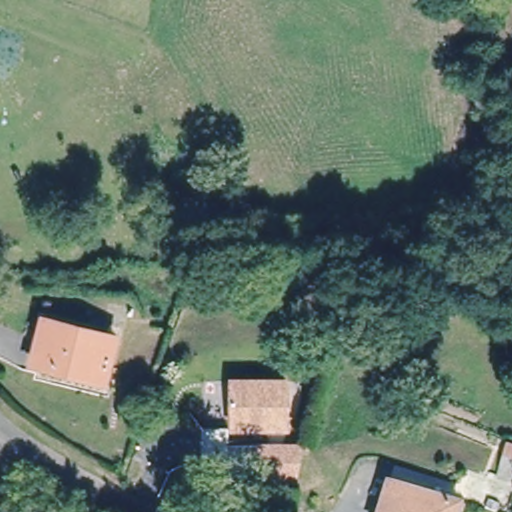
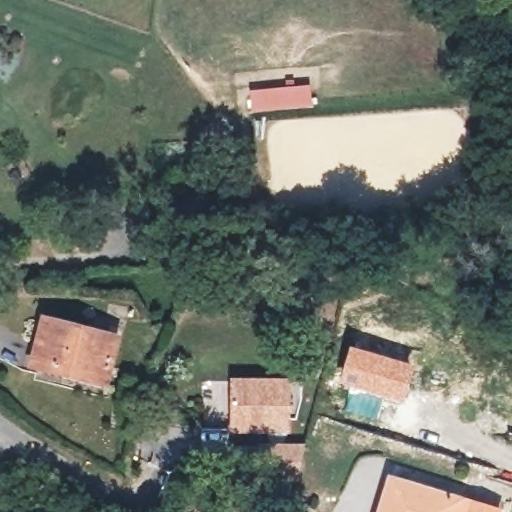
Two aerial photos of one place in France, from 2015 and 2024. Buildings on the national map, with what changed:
new [(312,107),(252,112),(250,90),(310,85),(312,107)]
unchanged [(117,337),(104,385),(29,366),(35,342),(41,317),(117,337)]
new [(337,385),(349,346),(415,366),(403,405),(382,400),(376,420),(343,411),(349,389),(337,385)]
unchanged [(290,387),(290,431),(286,447),(307,448),(298,479),(261,478),(262,447),(271,447),(271,431),(235,431),(235,386),(290,387)]
unchanged [(460,501),(457,512),(381,512),(390,480),(460,501)]
new [(460,501),(458,500),(460,496),(503,510),(502,512),(457,512),(460,501)]

